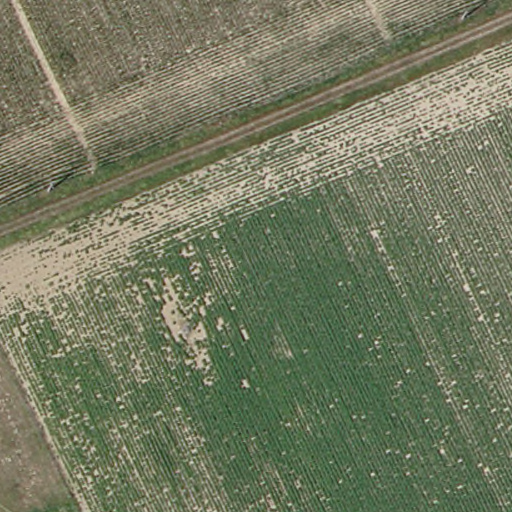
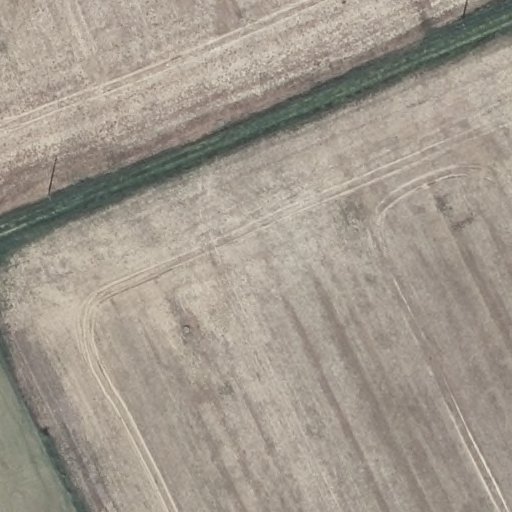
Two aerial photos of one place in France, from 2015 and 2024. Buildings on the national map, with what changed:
[]

